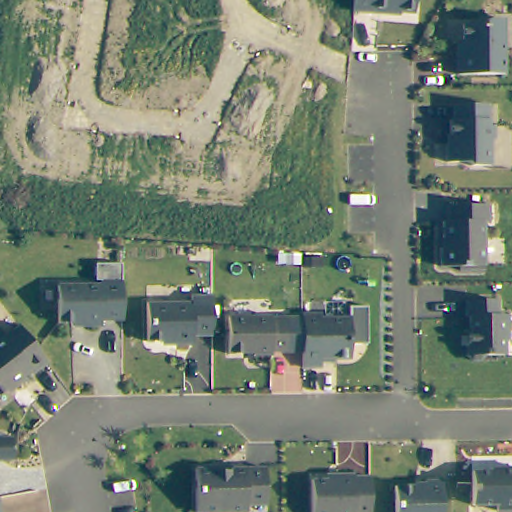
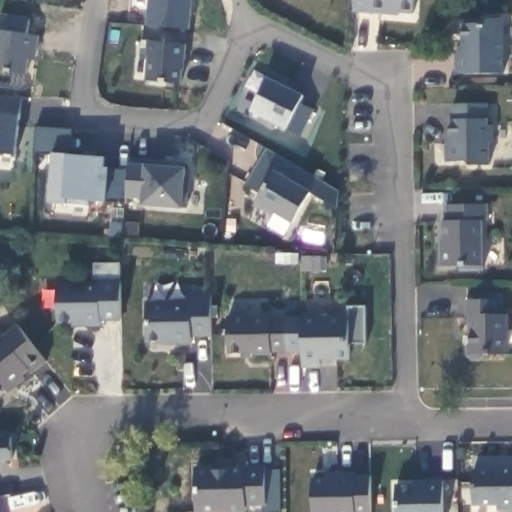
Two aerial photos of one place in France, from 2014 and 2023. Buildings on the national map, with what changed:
unchanged [(354,13),(355,0),(417,0),(415,16),(390,14),(390,16),(354,13)]
unchanged [(29,34),(41,36),(36,60),(31,59),(28,74),(0,70),(0,20),(1,14),(31,18),(29,34)]
unchanged [(462,56),(462,27),(482,27),(487,22),(502,22),(502,77),(455,77),(455,56),(462,56)]
new [(182,44),(189,46),(185,72),(184,72),(183,84),(147,80),(150,57),(146,57),(149,40),(144,40),(146,25),(183,30),(182,44)]
new [(268,79),(305,97),(302,102),(316,110),(302,138),(288,130),(252,113),(268,79)]
new [(18,156),(0,154),(0,98),(22,99),(21,118),(18,156)]
unchanged [(445,146),(449,143),(448,124),(451,124),(451,108),(486,108),(486,129),(491,129),(491,144),(488,144),(488,168),(469,168),(466,164),(445,165),(445,146)]
new [(338,209),(312,195),(295,226),(276,215),(273,218),(254,206),(258,201),(262,195),(245,186),(266,151),(339,193),(338,209)]
new [(67,155),(106,158),(106,168),(111,169),(130,170),(130,164),(146,165),(187,168),(185,211),(143,208),(143,199),(126,199),(126,204),(109,203),(89,201),(88,208),(50,204),(55,155),(67,155)]
unchanged [(487,206),(487,223),(481,223),(482,268),(482,272),(458,272),(458,268),(439,268),(439,264),(439,250),(442,250),(441,223),(445,223),(445,207),(487,206)]
unchanged [(297,267),(285,267),(285,257),(297,257),(297,267)]
unchanged [(316,269),(303,270),(303,260),(316,260),(316,269)]
unchanged [(122,282),(121,320),(101,319),(101,325),(84,326),(84,322),(58,322),(59,284),(101,284),(101,278),(96,278),(96,264),(122,265),(122,282)]
unchanged [(146,307),(190,305),(190,299),(210,299),(211,339),(192,338),(192,347),(172,348),(171,344),(146,346),(146,307)]
unchanged [(471,361),(471,351),(473,351),(473,323),(470,323),(470,307),(500,307),(501,322),(511,321),(512,347),(509,348),(509,362),(490,362),(482,367),(475,367),(471,361)]
unchanged [(302,355),(301,320),(301,317),(320,317),(320,320),(347,320),(347,309),(366,309),(366,347),(349,347),(349,361),(320,361),(321,370),(302,370),(302,355)]
unchanged [(229,319),(271,318),(271,320),(301,320),(302,355),(287,355),(271,355),(271,359),(253,359),(253,356),(228,356),(229,319)]
unchanged [(19,327),(27,338),(47,363),(31,374),(29,371),(22,376),(25,380),(13,389),(11,386),(0,394),(0,333),(3,338),(19,327)]
unchanged [(13,461),(0,461),(0,435),(11,438),(13,461)]
unchanged [(212,468),(212,471),(229,471),(229,468),(265,467),(265,506),(246,506),(246,512),(196,512),(195,469),(212,468)]
unchanged [(490,473),(490,470),(512,470),(512,512),(497,512),(497,508),(473,508),(473,473),(490,473)]
unchanged [(337,481),(337,475),(355,476),(355,477),(370,477),(370,512),(313,512),(313,481),(337,481)]
unchanged [(426,488),(426,484),(443,483),(443,512),(396,512),(395,489),(426,488)]

